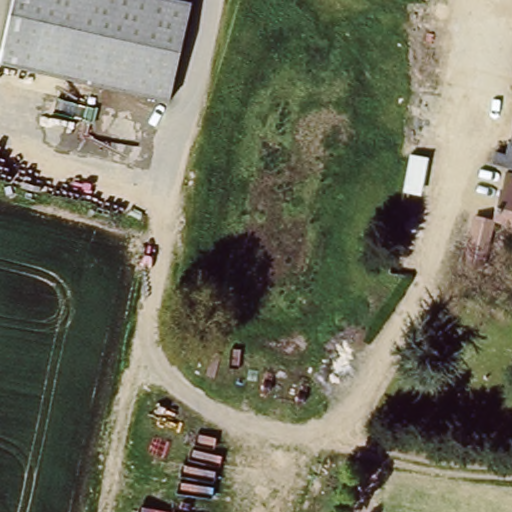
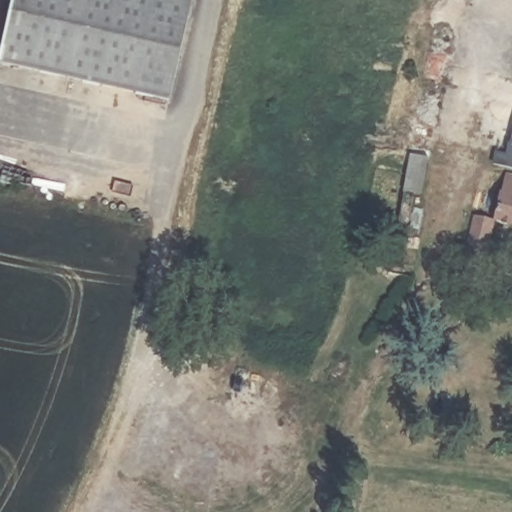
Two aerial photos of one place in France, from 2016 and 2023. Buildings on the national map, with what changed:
unchanged [(0,63),(0,46),(10,0),(191,0),(171,100),(0,63)]
unchanged [(497,151),(507,153),(509,144),(512,144),(512,142),(512,167),(494,162),(497,151)]
unchanged [(409,275),(394,272),(411,157),(412,154),(427,157),(409,275)]
unchanged [(511,225),(493,220),(506,173),(512,175),(512,232),(509,232),(511,225)]
unchanged [(501,232),(488,277),(479,274),(472,272),(484,227),(501,232)]

